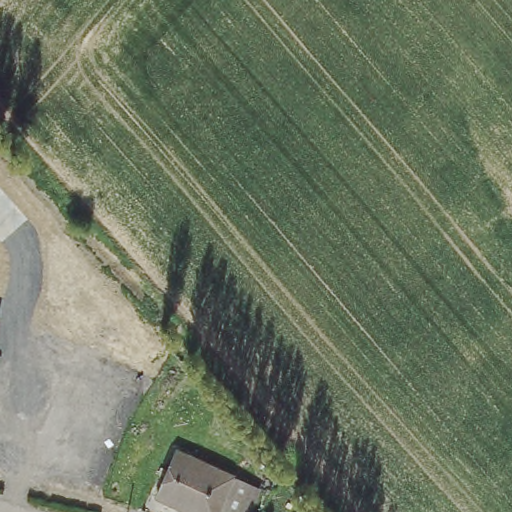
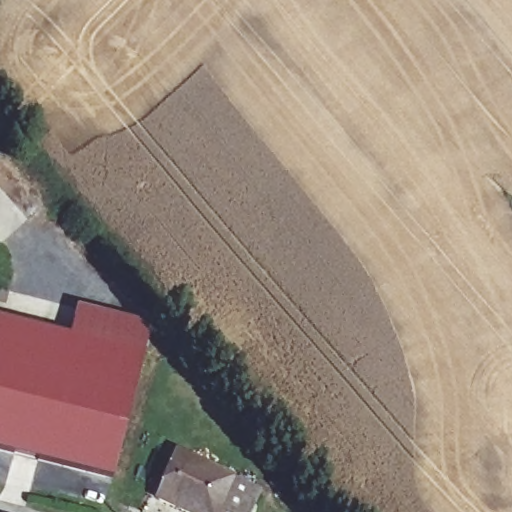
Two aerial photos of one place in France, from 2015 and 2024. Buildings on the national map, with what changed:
new [(76,306),(150,323),(144,353),(70,336),(76,306)]
new [(144,353),(116,476),(0,450),(0,316),(70,336),(144,353)]
unchanged [(183,512),(152,499),(172,451),(265,494),(257,512),(183,512)]

